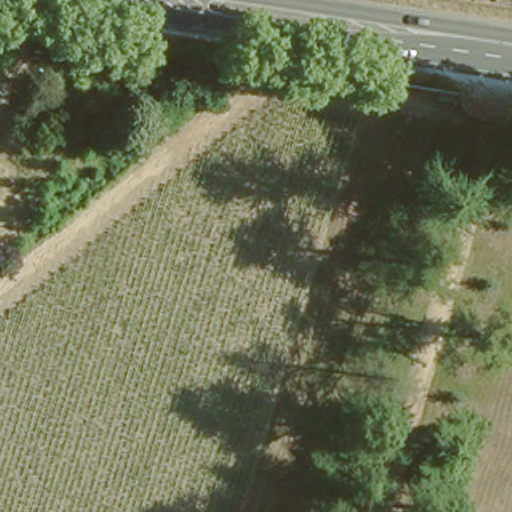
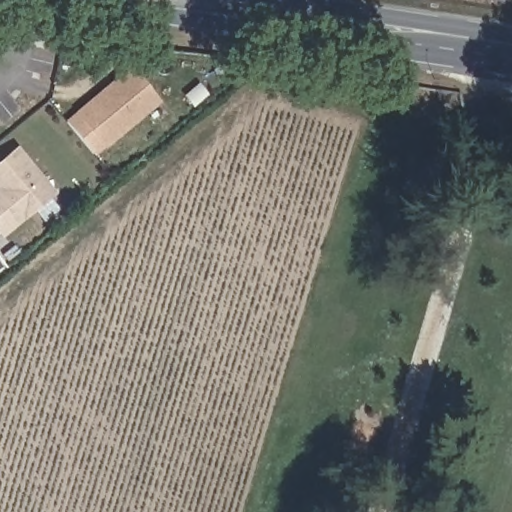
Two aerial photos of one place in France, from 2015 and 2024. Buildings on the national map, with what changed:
new [(75,112),(131,67),(159,103),(103,148),(75,112)]
new [(55,193),(2,238),(0,236),(0,158),(16,146),(55,193)]

